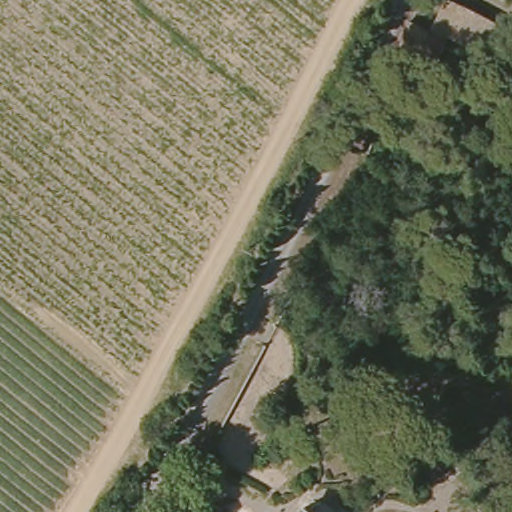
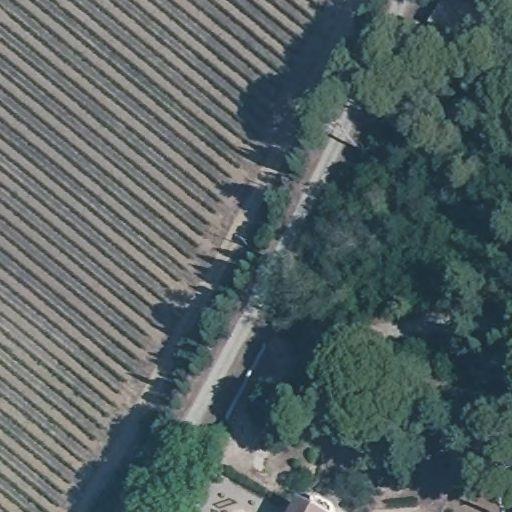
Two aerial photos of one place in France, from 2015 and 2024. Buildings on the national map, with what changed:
unchanged [(459,35),(441,68),(423,59),(400,47),(415,20),(438,32),(455,0),(457,0),(509,26),(495,54),(459,35)]
unchanged [(307,499),(330,512),(300,512),(307,499)]

